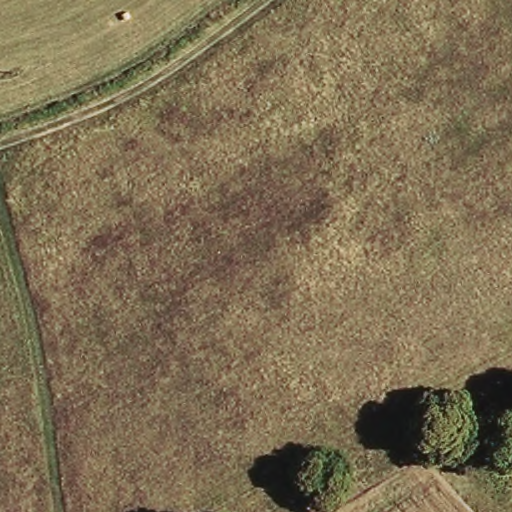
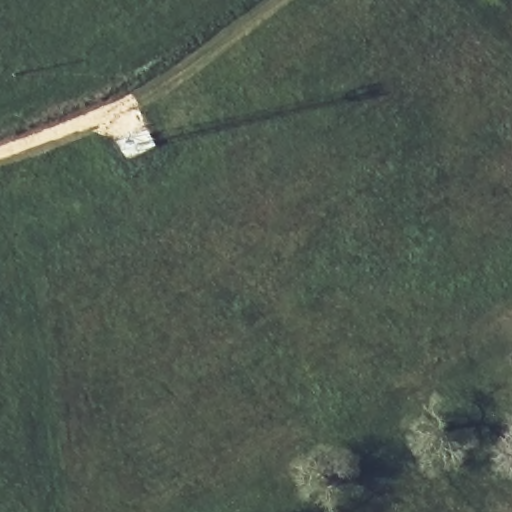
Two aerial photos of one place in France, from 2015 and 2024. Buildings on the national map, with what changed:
[]

